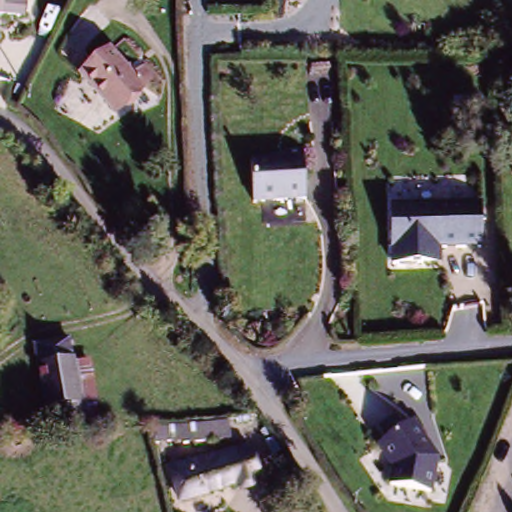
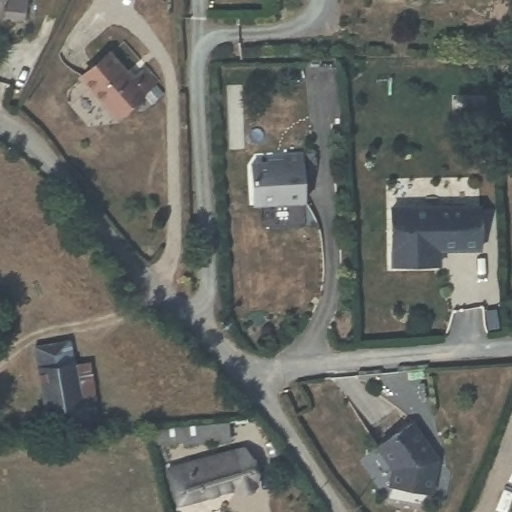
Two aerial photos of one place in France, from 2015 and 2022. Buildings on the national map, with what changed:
unchanged [(0,13),(0,0),(22,0),(21,14),(0,13)]
unchanged [(117,122),(75,82),(111,51),(150,99),(117,122)]
unchanged [(252,158),(312,159),(310,205),(252,202),(252,158)]
unchanged [(487,202),(490,250),(445,254),(445,268),(398,270),(397,205),(487,202)]
unchanged [(47,426),(43,412),(37,366),(32,342),(68,336),(72,362),(95,361),(100,418),(47,426)]
unchanged [(390,462),(377,441),(410,418),(435,463),(432,491),(390,483),(390,462)]
unchanged [(248,444),(262,482),(185,503),(172,468),(248,444)]

